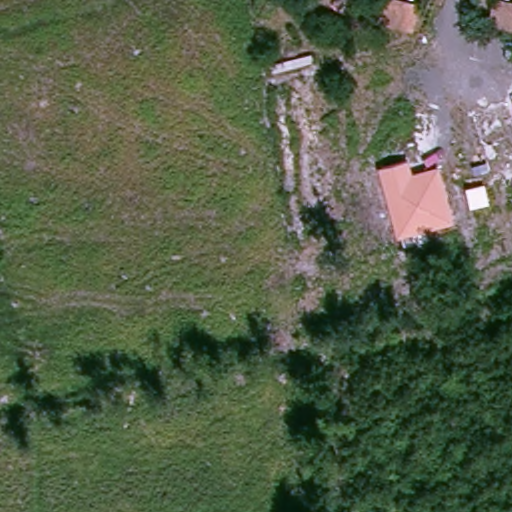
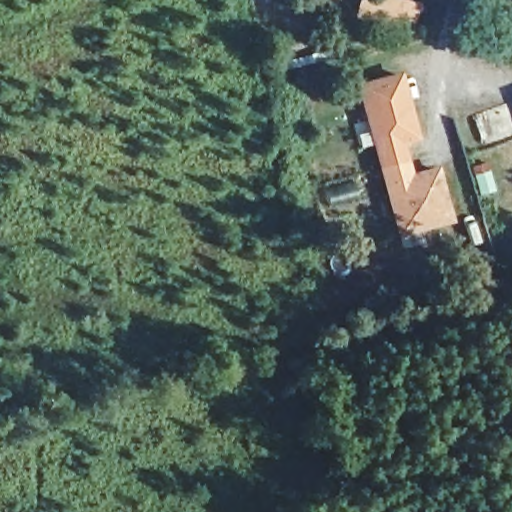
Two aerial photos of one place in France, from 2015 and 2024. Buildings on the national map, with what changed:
unchanged [(415,7),(410,27),(371,17),(375,0),(388,0),(415,7)]
unchanged [(496,1),(512,4),(512,28),(492,25),(496,1)]
new [(357,85),(402,73),(420,140),(405,145),(408,161),(378,169),(357,85)]
unchanged [(408,161),(412,174),(439,167),(455,224),(397,241),(378,169),(408,161)]

